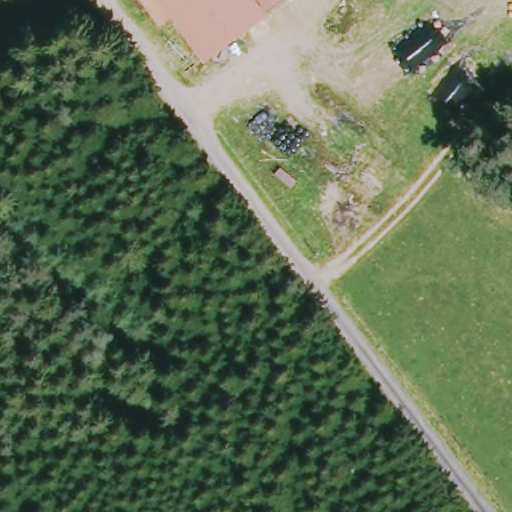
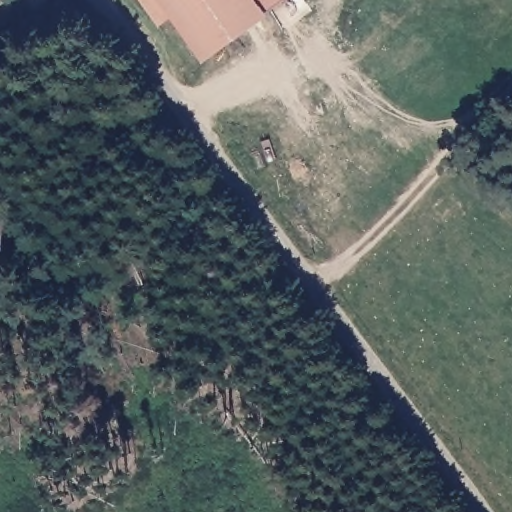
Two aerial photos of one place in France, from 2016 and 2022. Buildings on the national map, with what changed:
unchanged [(273,20),(209,65),(175,20),(163,29),(142,0),(289,0),(269,14),(273,20)]

